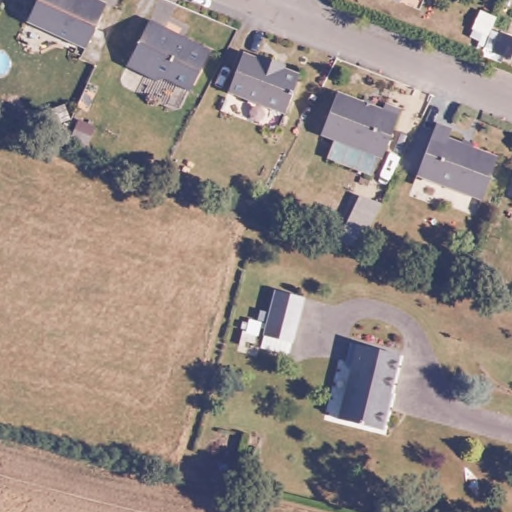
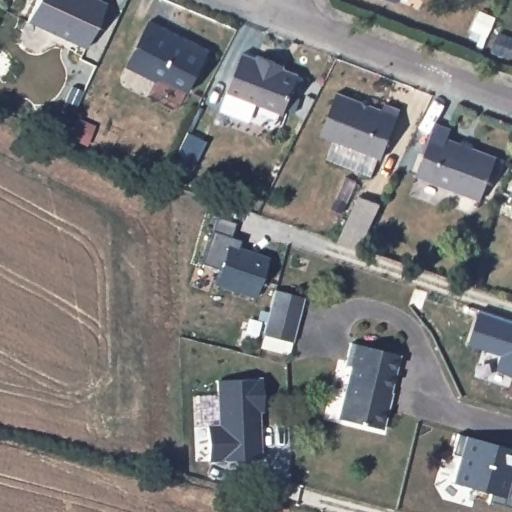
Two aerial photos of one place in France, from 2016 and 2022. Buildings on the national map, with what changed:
unchanged [(91,39),(32,12),(38,0),(108,0),(91,39)]
unchanged [(214,45),(195,86),(168,73),(162,75),(132,60),(154,16),(214,45)]
unchanged [(279,55),(290,59),(288,63),(303,69),(288,108),(231,86),(247,47),(261,52),(262,49),(279,55)]
unchanged [(389,98),(405,104),(386,153),(326,130),(341,87),(387,105),(389,98)]
unchanged [(451,132),(501,151),(484,195),(421,170),(441,118),(455,122),(451,132)]
unchanged [(343,231),(364,186),(385,194),(364,239),(343,231)]
new [(255,297),(214,284),(219,268),(200,262),(211,231),(216,217),(233,223),(230,236),(240,240),(238,247),(268,258),(255,297)]
unchanged [(276,338),(265,337),(270,276),(300,278),(298,327),(296,327),(296,340),(276,339),(276,338)]
new [(500,353),(468,343),(479,309),(512,320),(512,373),(495,368),(500,353)]
unchanged [(344,342),(392,346),(388,396),(396,397),(394,423),(348,418),(351,370),(343,369),(344,342)]
new [(259,458),(208,461),(206,424),(217,424),(216,380),(261,377),(263,411),(258,411),(259,458)]
new [(460,455),(451,453),(457,433),(465,436),(512,448),(512,469),(509,477),(512,478),(512,502),(510,507),(488,501),(490,492),(451,483),(460,455)]

